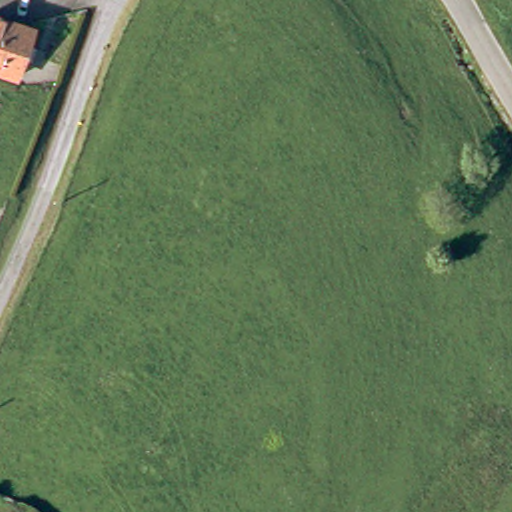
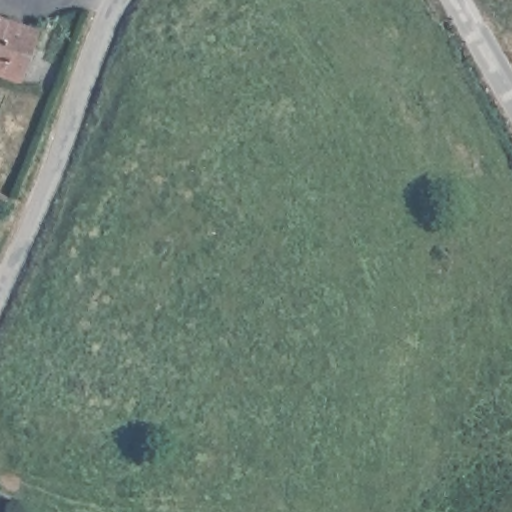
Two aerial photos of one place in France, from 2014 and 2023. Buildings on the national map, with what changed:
unchanged [(11,74),(0,70),(0,19),(29,28),(11,74)]

